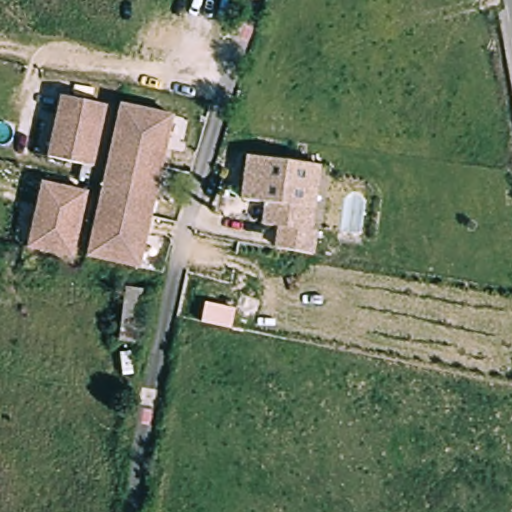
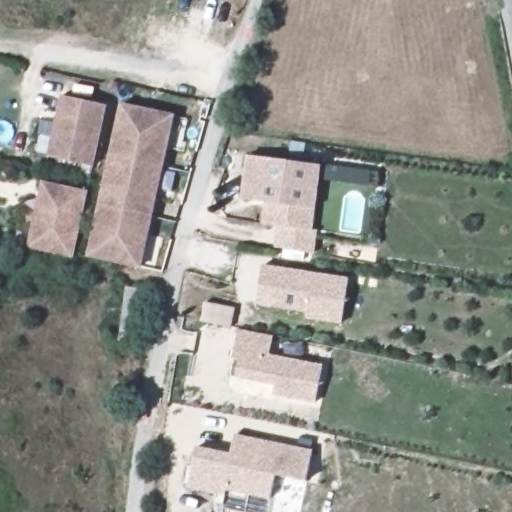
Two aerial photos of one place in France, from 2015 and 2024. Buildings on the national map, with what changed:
unchanged [(61,96),(106,103),(95,165),(50,158),(61,96)]
unchanged [(117,101),(168,110),(142,261),(90,252),(117,101)]
unchanged [(240,200),(247,156),(287,163),(279,205),(264,203),(240,200)]
unchanged [(318,167),(308,231),(313,232),(309,255),(273,248),(276,227),(260,225),(264,203),(279,205),(287,163),(318,167)]
unchanged [(85,191),(75,253),(30,246),(41,184),(85,191)]
new [(344,279),(342,324),(303,322),(301,314),(258,313),(263,287),(261,295),(255,294),(257,285),(261,264),(295,271),(344,279)]
unchanged [(144,341),(121,338),(127,286),(152,290),(144,341)]
unchanged [(204,304),(234,310),(230,328),(200,323),(204,304)]
new [(322,365),(315,405),(272,396),(274,387),(234,379),(238,361),(232,360),(238,331),(272,337),(269,356),(322,365)]
new [(194,456),(232,464),(238,437),(312,453),(307,483),(276,476),(270,500),(226,490),(225,495),(187,488),(194,456)]

